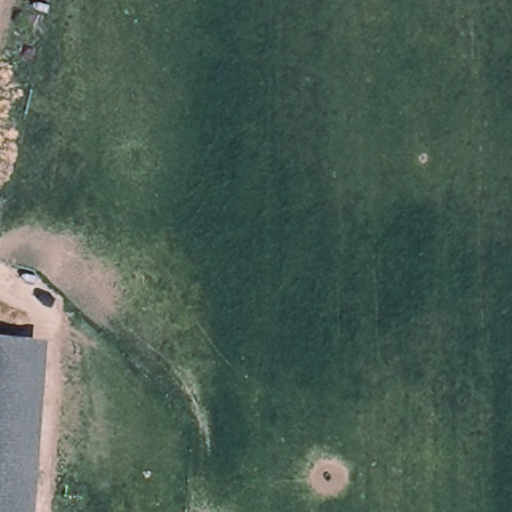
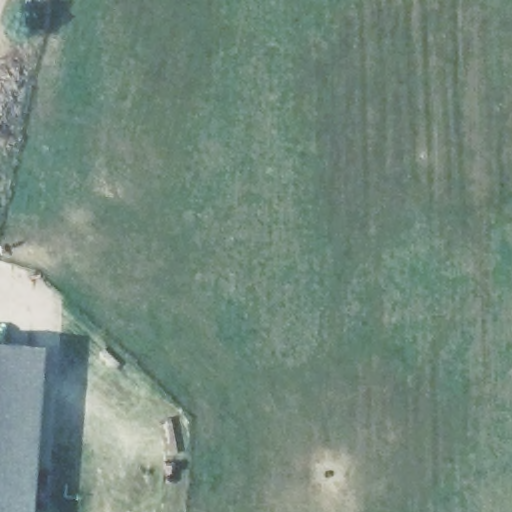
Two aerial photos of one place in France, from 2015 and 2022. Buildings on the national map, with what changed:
unchanged [(0,342),(33,345),(19,512),(0,512),(0,342)]

